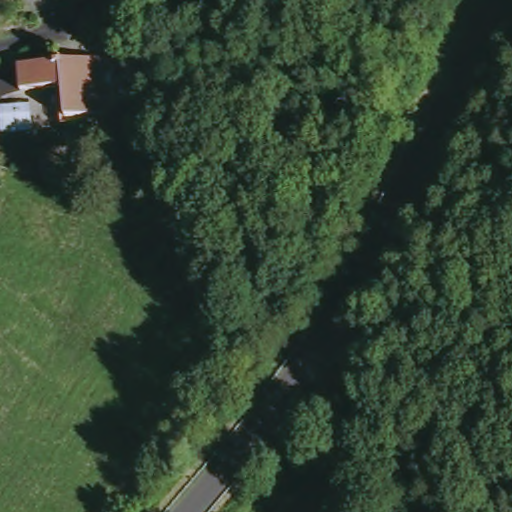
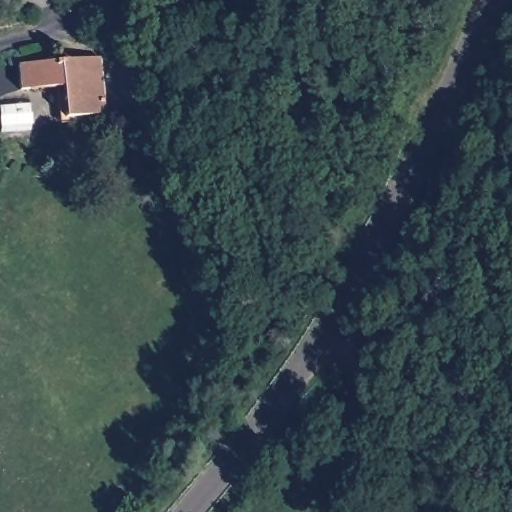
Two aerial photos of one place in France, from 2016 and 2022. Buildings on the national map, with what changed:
unchanged [(110,120),(71,120),(71,91),(30,90),(30,64),(111,65),(110,120)]
unchanged [(0,137),(0,117),(12,114),(15,133),(0,137)]

